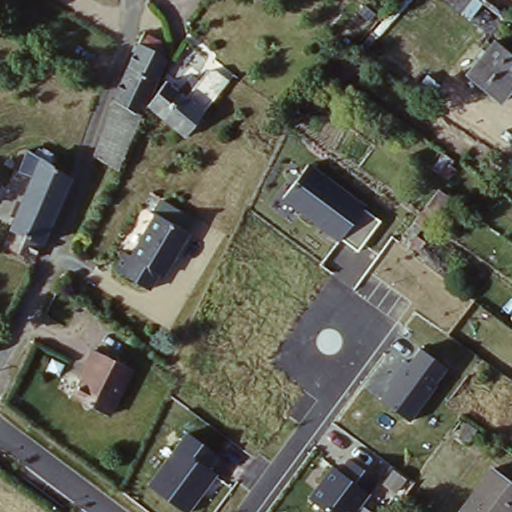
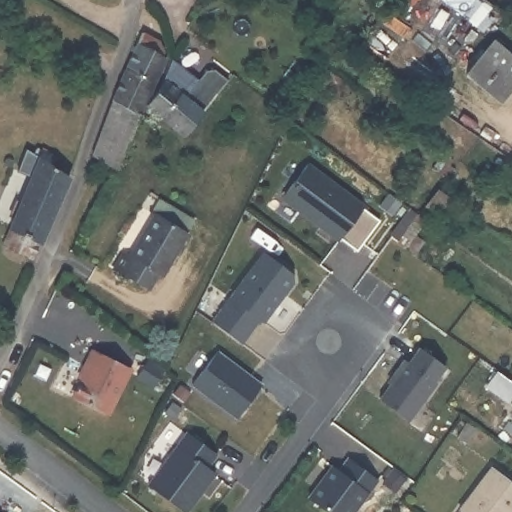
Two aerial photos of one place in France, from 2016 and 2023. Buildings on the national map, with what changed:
new [(487,12),(495,20),(483,34),(446,0),(487,0),(496,9),(487,12)]
unchanged [(132,38),(155,47),(152,56),(163,59),(161,73),(155,71),(149,86),(119,71),(132,38)]
unchanged [(512,55),(512,88),(503,99),(468,72),(490,39),(512,55)]
unchanged [(85,158),(119,71),(149,86),(115,170),(107,166),(93,161),(85,158)]
unchanged [(191,141),(149,108),(159,95),(167,85),(187,100),(200,84),(223,101),(210,118),(191,141)]
unchanged [(31,186),(8,177),(17,154),(40,164),(67,175),(33,256),(7,246),(31,186)]
unchanged [(368,205),(365,210),(380,221),(358,252),(342,240),(340,243),(281,200),(309,161),(368,205)]
unchanged [(113,267),(122,250),(129,253),(152,212),(185,230),(161,274),(156,271),(147,287),(113,267)]
new [(293,275),(294,281),(263,323),(259,320),(241,344),(213,323),(264,254),(293,275)]
unchanged [(126,364),(104,411),(69,395),(83,364),(79,363),(87,346),(126,364)]
unchanged [(449,368),(409,424),(380,402),(419,348),(449,368)]
new [(261,386),(237,418),(193,385),(218,353),(261,386)]
unchanged [(219,454),(209,467),(218,474),(191,512),(185,512),(148,485),(189,431),(219,454)]
unchanged [(381,479),(357,512),(327,512),(307,498),(332,465),(339,470),(350,456),(381,479)]
unchanged [(512,479),(512,512),(459,512),(455,510),(490,463),(512,479)]

